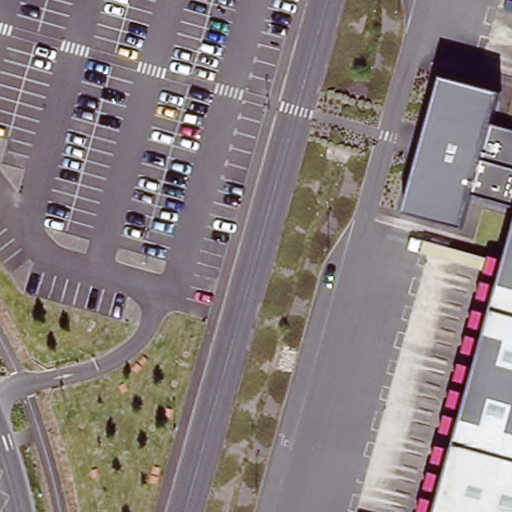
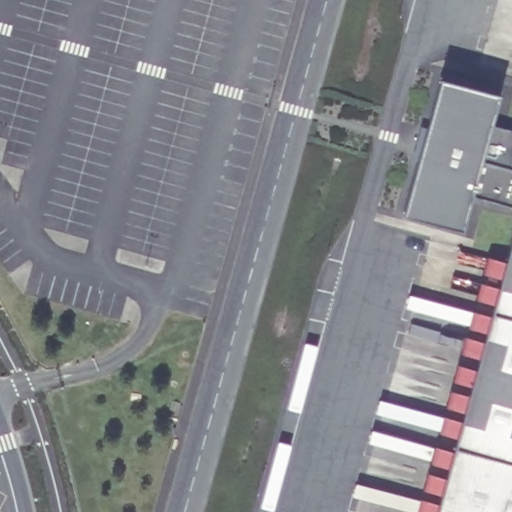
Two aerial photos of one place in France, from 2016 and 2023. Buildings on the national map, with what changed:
unchanged [(464,229),(403,212),(440,75),(502,92),(492,124),(512,129),(512,207),(473,196),(464,229)]
unchanged [(512,512),(435,512),(512,236),(512,512)]

